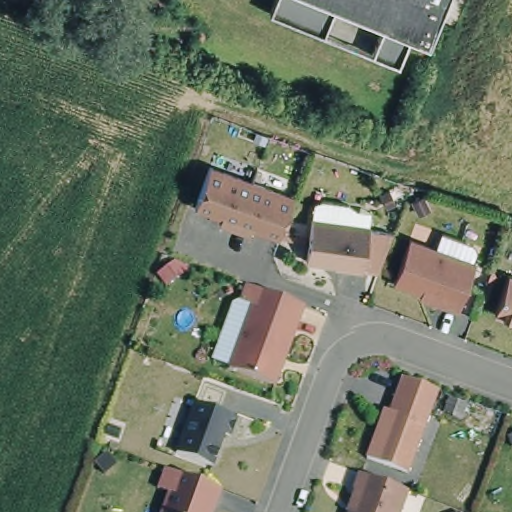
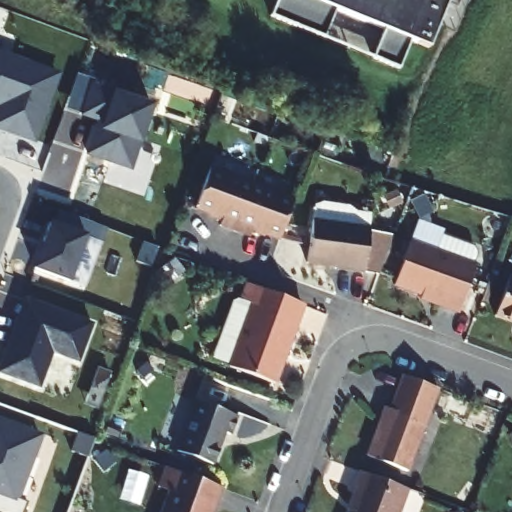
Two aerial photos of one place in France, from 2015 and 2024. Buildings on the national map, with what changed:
unchanged [(276,0),(446,0),(426,45),(410,40),(397,69),(370,60),(380,32),(330,12),(321,37),(268,18),(276,0)]
new [(60,74),(35,144),(0,131),(0,51),(60,74)]
new [(85,156),(96,124),(64,112),(76,75),(93,81),(92,85),(111,91),(153,106),(140,146),(131,172),(85,156)]
unchanged [(300,203),(285,243),(258,233),(255,240),(225,229),(227,222),(200,212),(215,172),(300,203)]
unchanged [(370,273),(340,270),(340,269),(312,266),(317,223),(319,207),(327,205),(352,208),(360,212),(358,228),(375,230),(370,273)]
new [(49,222),(55,224),(59,211),(107,229),(102,242),(87,236),(70,282),(33,269),(49,222)]
unchanged [(407,240),(473,264),(455,312),(440,306),(441,302),(391,284),(407,240)]
unchanged [(512,284),(512,327),(490,318),(504,281),(512,284)]
unchanged [(225,348),(240,306),(246,303),(252,287),(307,307),(286,366),(288,367),(280,387),(235,370),(237,363),(221,357),(225,348)]
new [(0,375),(0,364),(25,297),(93,323),(78,363),(52,354),(39,389),(0,375)]
unchanged [(380,421),(386,423),(402,378),(433,389),(437,391),(407,473),(366,458),(380,421)]
unchanged [(200,403),(242,418),(235,437),(229,435),(217,467),(181,453),(200,403)]
new [(18,501),(26,504),(23,512),(0,512),(0,420),(42,437),(18,501)]
unchanged [(226,490),(218,512),(168,512),(175,493),(163,489),(170,470),(226,490)]
unchanged [(401,512),(352,512),(360,492),(355,491),(361,475),(408,492),(401,512)]

